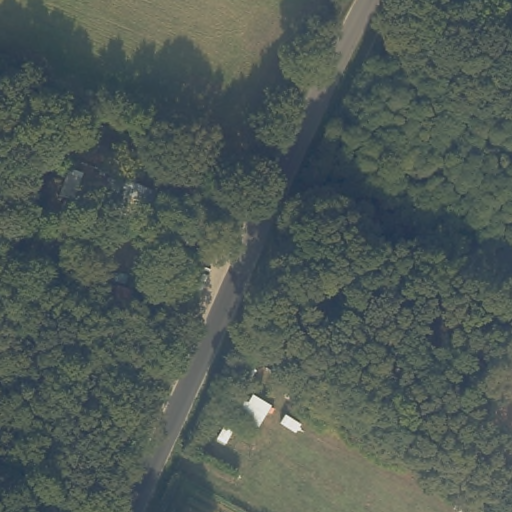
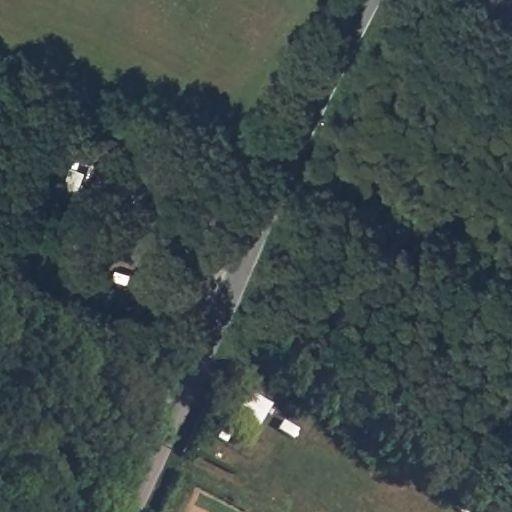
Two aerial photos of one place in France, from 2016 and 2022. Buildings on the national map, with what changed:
unchanged [(94,121),(123,129),(114,161),(86,144),(94,121)]

